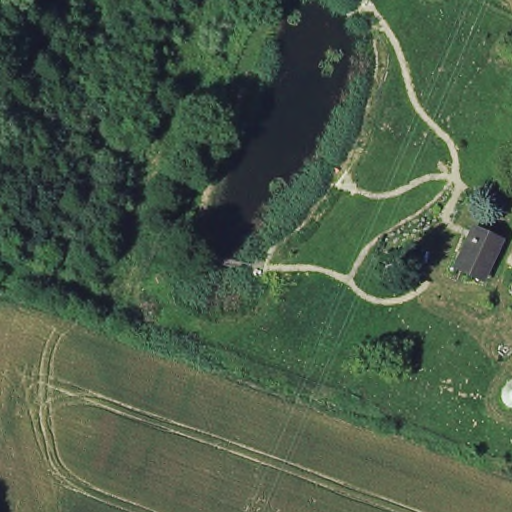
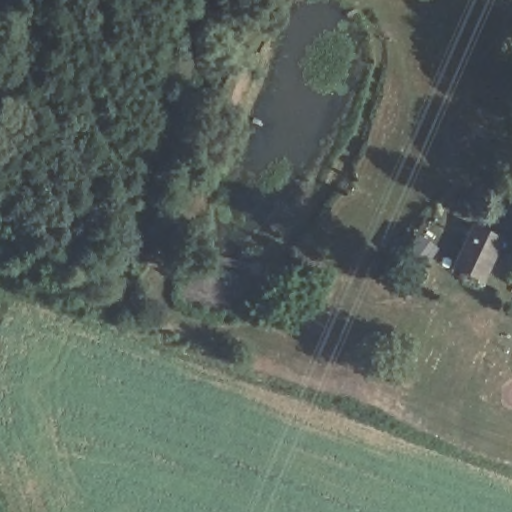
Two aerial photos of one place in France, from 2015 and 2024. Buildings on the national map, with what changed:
unchanged [(471,228),(499,241),(482,278),(454,265),(471,228)]

